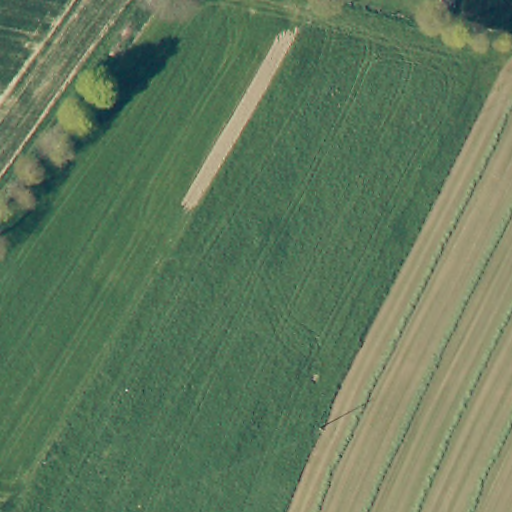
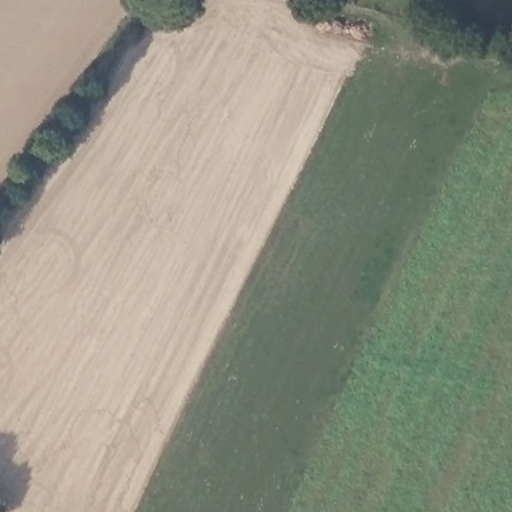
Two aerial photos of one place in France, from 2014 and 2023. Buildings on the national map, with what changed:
[]

